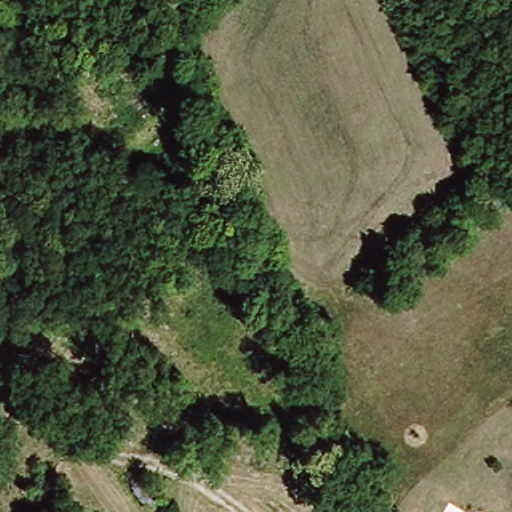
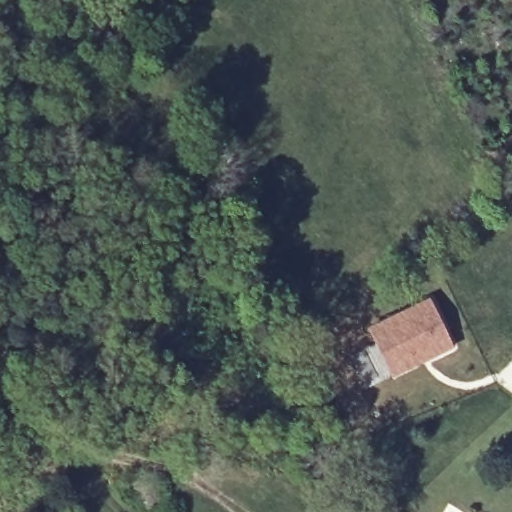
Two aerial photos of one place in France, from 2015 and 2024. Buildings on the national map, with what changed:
new [(430,297),(454,347),(390,377),(365,327),(430,297)]
unchanged [(146,512),(143,512),(130,501),(144,486),(158,500),(146,512)]

